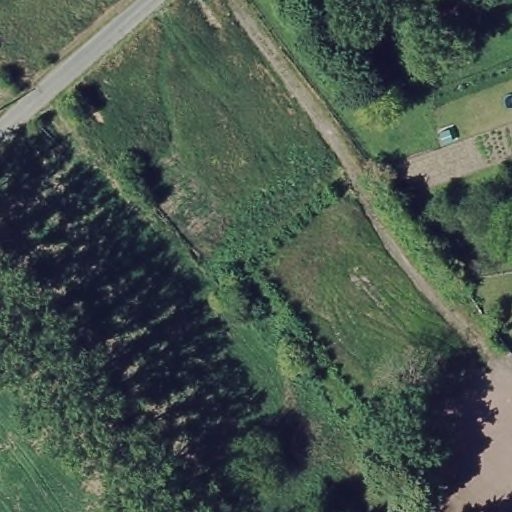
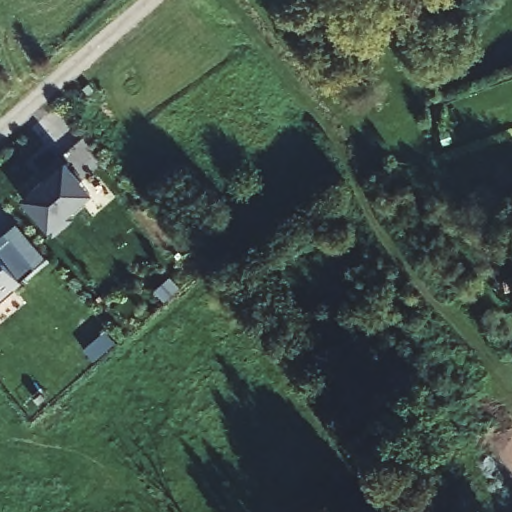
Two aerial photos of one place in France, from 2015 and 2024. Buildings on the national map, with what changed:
new [(64,160),(92,193),(68,214),(72,219),(53,235),(48,230),(19,198),(43,177),(39,172),(58,155),(64,160)]
new [(9,237),(34,268),(19,282),(0,299),(0,245),(9,237)]

